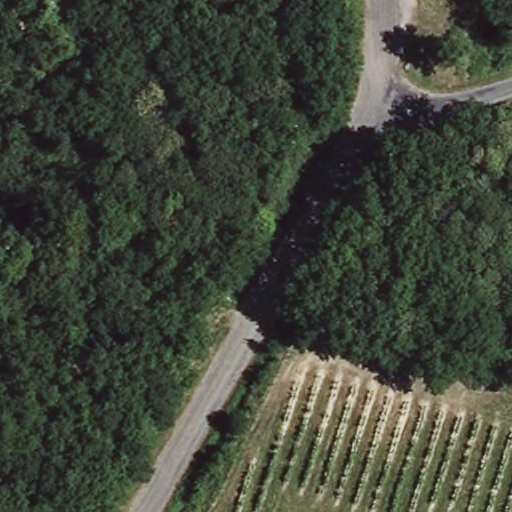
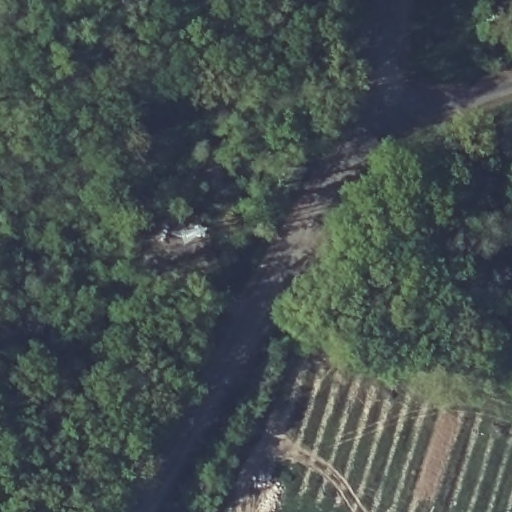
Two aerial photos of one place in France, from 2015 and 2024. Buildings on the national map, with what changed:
[]

